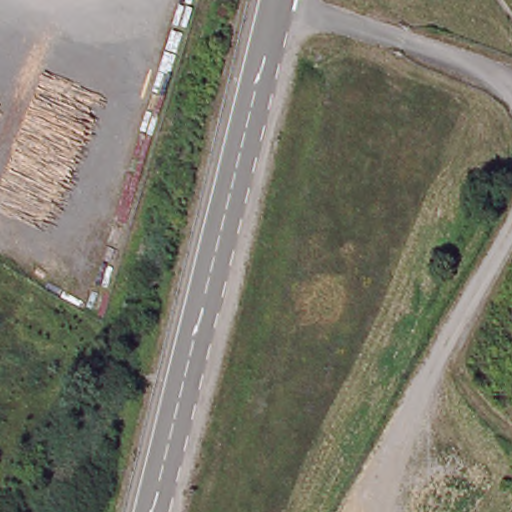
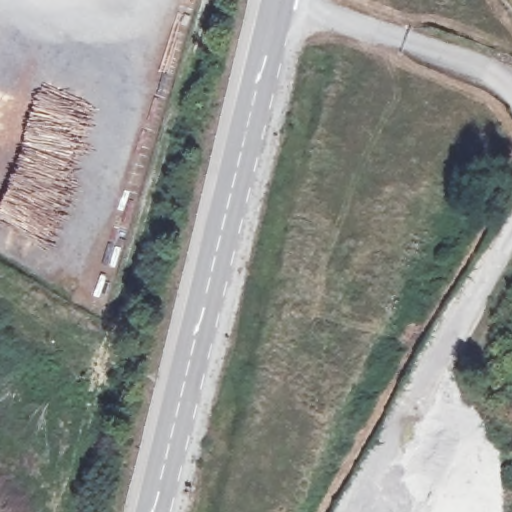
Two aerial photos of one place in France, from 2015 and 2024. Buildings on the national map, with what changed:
[]

